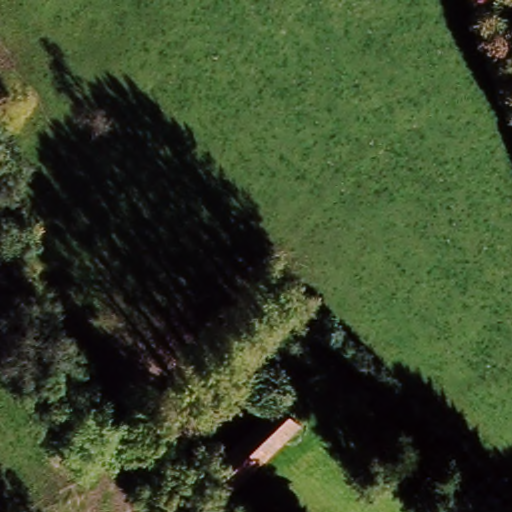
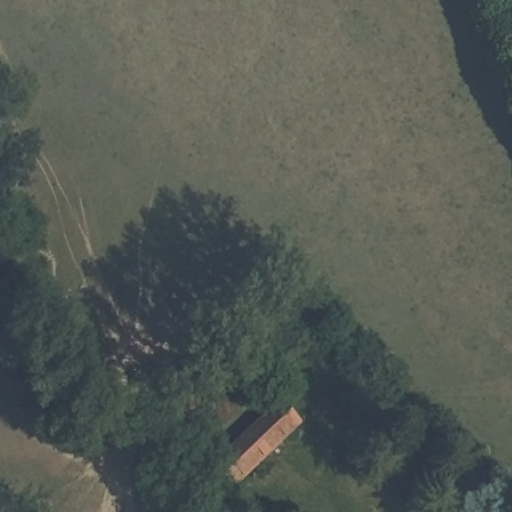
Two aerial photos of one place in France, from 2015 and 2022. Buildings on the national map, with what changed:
unchanged [(276,397),(295,415),(235,476),(216,458),(276,397)]

